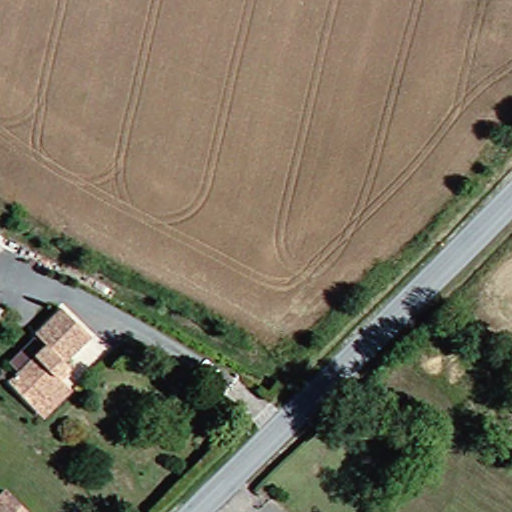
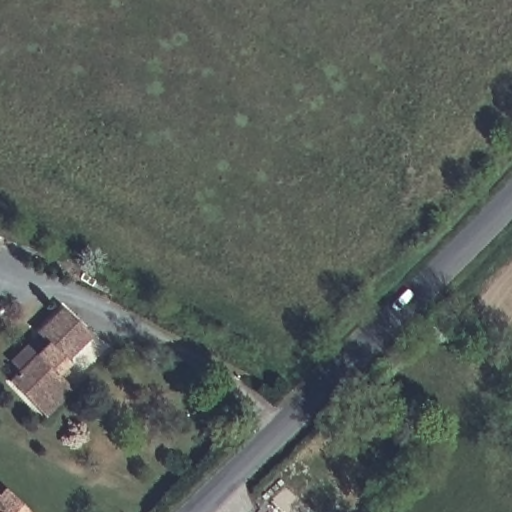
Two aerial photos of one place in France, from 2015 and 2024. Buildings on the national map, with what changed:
unchanged [(48,413),(38,402),(13,375),(51,342),(40,328),(68,304),(95,334),(69,357),(73,362),(63,372),(66,377),(77,387),(48,413)]
unchanged [(7,486),(35,512),(0,512),(0,493),(7,486)]

